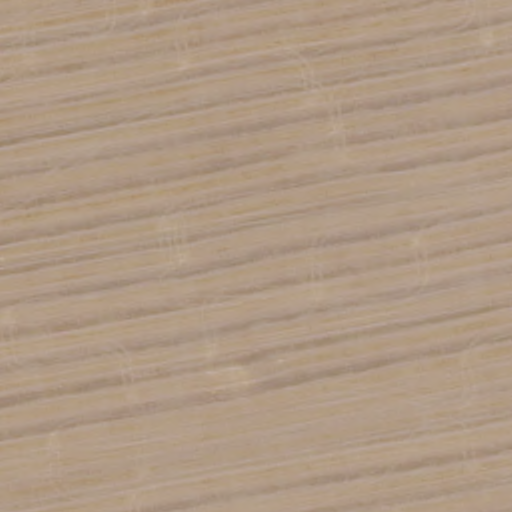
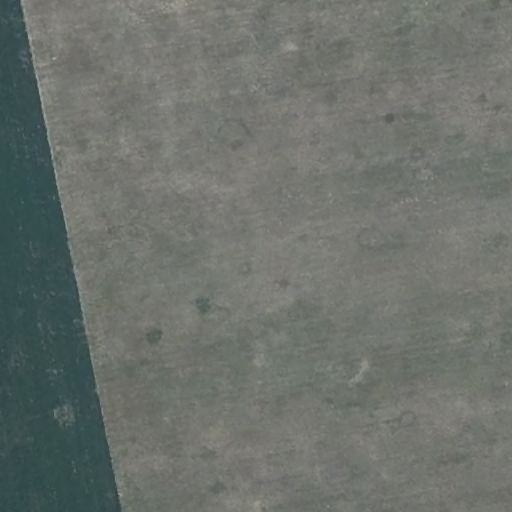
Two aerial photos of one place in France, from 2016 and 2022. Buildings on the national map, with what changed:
[]

